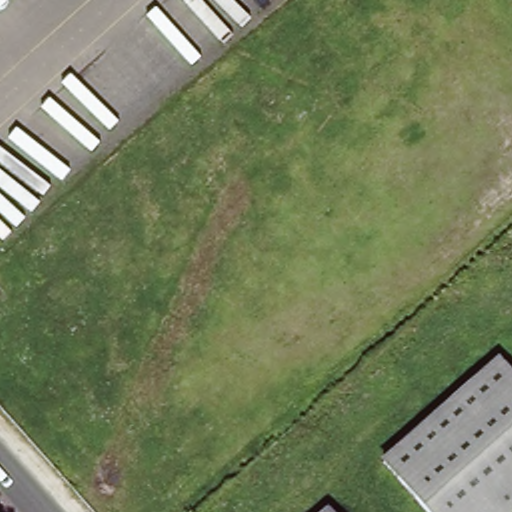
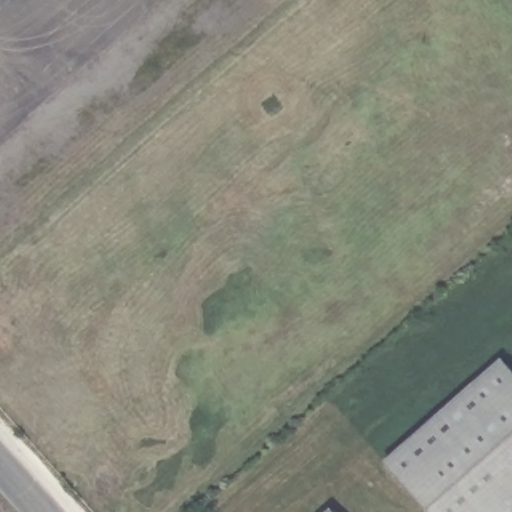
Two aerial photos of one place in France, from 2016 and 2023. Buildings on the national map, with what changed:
unchanged [(512,512),(432,512),(389,464),(499,365),(512,380),(512,512)]

